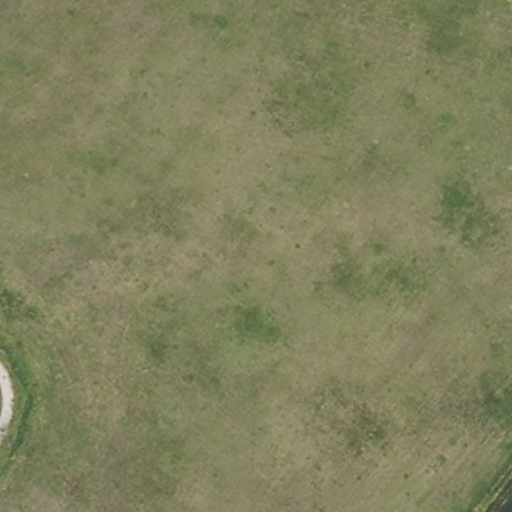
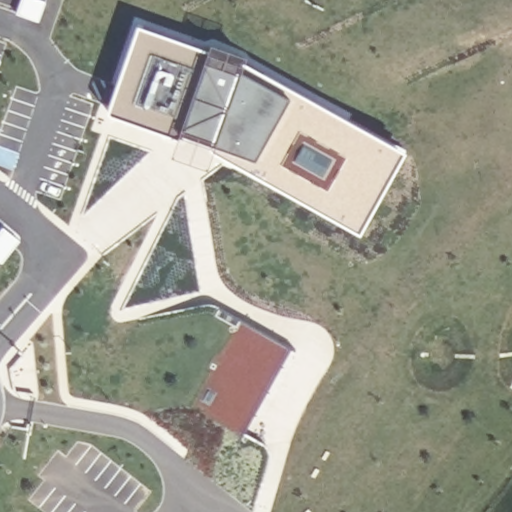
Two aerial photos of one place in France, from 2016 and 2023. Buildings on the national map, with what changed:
new [(360,232),(208,142),(213,132),(185,123),(180,137),(108,111),(135,25),(240,62),(403,152),(360,232)]
new [(290,348),(243,433),(191,405),(243,321),(290,348)]

